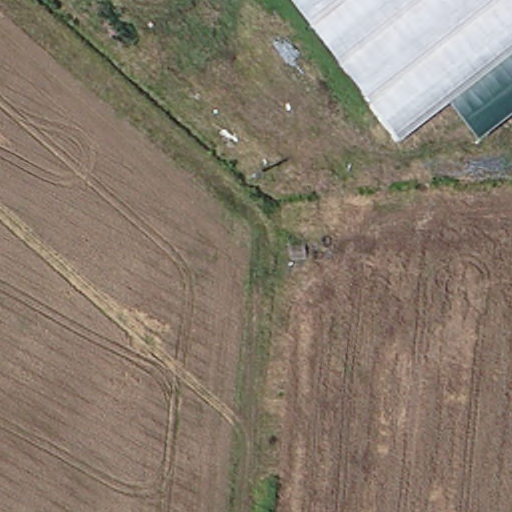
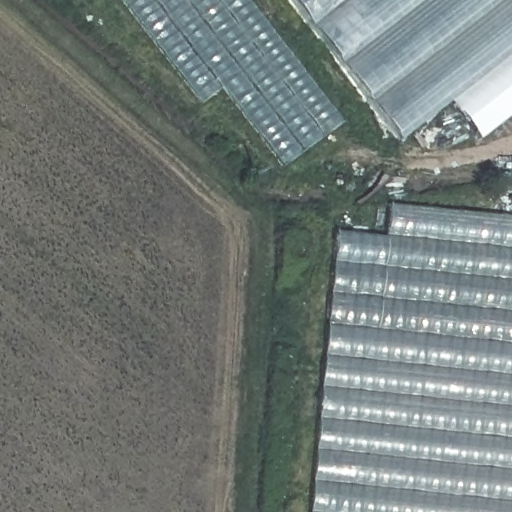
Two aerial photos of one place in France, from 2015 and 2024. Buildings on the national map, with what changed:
new [(82,0),(86,0),(84,1),(82,0)]
new [(196,106),(117,0),(243,0),(338,124),(278,167),(220,88),(196,106)]
unchanged [(302,0),(512,0),(512,61),(411,140),(302,0)]
new [(478,139),(454,106),(512,62),(512,112),(478,139)]
new [(337,225),(386,231),(390,205),(512,214),(512,512),(311,512),(337,225)]

